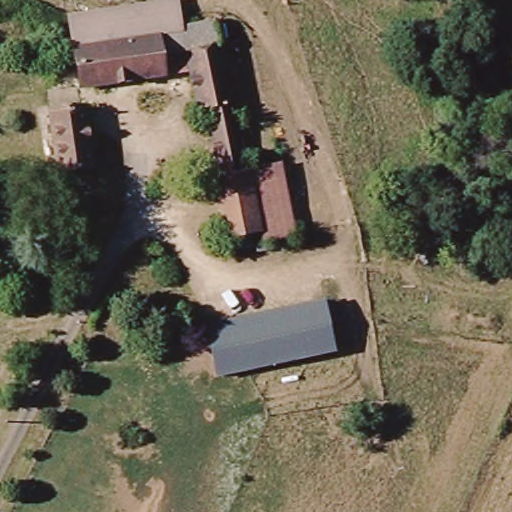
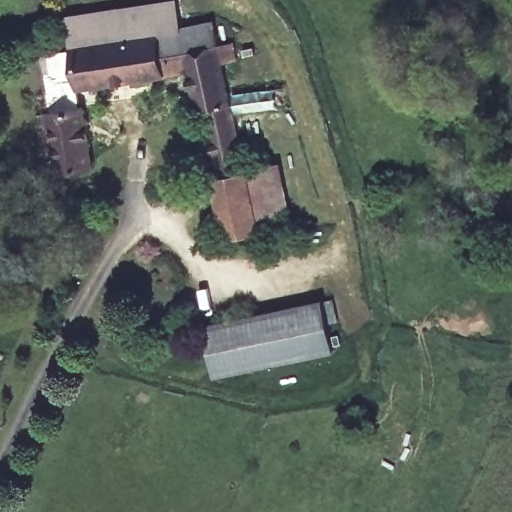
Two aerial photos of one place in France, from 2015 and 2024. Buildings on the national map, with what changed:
unchanged [(70,21),(177,7),(179,29),(181,37),(73,52),(70,21)]
unchanged [(210,182),(209,176),(216,175),(205,125),(198,126),(187,75),(181,37),(179,29),(216,22),(220,46),(231,44),(235,64),(224,65),(245,170),(246,175),(210,182)]
unchanged [(187,75),(78,90),(73,52),(181,37),(187,75)]
unchanged [(89,167),(56,172),(48,115),(81,110),(89,167)]
unchanged [(245,170),(274,164),(289,234),(259,240),(257,230),(246,175),(245,170)]
unchanged [(257,230),(221,237),(210,182),(246,175),(257,230)]
unchanged [(337,352),(220,380),(207,324),(325,297),(337,352)]

